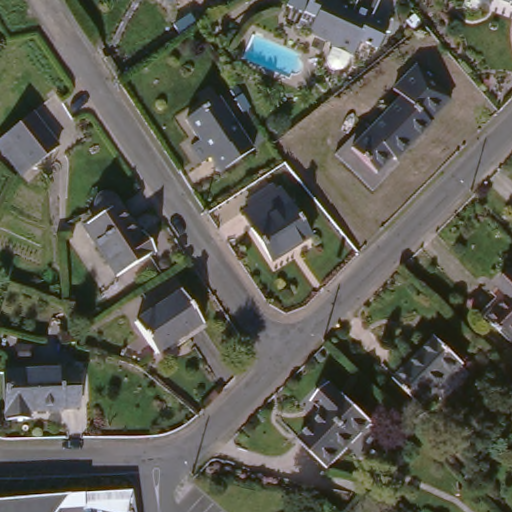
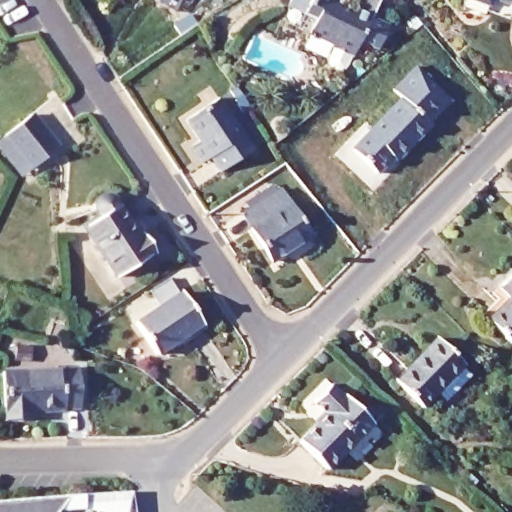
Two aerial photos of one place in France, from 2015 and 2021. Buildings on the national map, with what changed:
unchanged [(348,65),(345,67),(341,69),(337,71),(334,71),(332,67),(330,62),(330,57),(330,54),(334,45),(333,45),(335,40),(311,30),(297,24),(303,10),(287,2),(288,0),(338,0),(355,7),(359,0),(380,0),(374,15),(391,22),(381,46),(362,39),(356,55),(353,54),(350,61),(348,65)]
unchanged [(482,10),(460,2),(461,0),(512,0),(512,10),(485,1),(482,10)]
unchanged [(145,45),(151,55),(133,65),(127,55),(145,45)]
unchanged [(432,120),(435,122),(401,156),(405,160),(378,187),(340,151),(370,119),(376,124),(405,94),(398,86),(421,64),(455,96),(432,120)]
unchanged [(223,175),(213,161),(205,167),(192,150),(201,144),(187,125),(219,101),(255,152),(223,175)]
unchanged [(11,143),(16,146),(7,135),(32,114),(58,146),(62,150),(58,152),(45,164),(37,171),(27,180),(0,149),(0,146),(7,141),(11,143)]
unchanged [(266,262),(245,228),(249,226),(240,211),(277,189),(307,239),(266,262)]
unchanged [(152,256),(112,277),(94,244),(98,241),(89,223),(102,215),(100,205),(101,201),(103,200),(106,198),(110,199),(114,200),(116,202),(137,238),(141,235),(152,256)]
unchanged [(493,292),(508,276),(512,279),(512,348),(510,350),(483,326),(505,303),(493,292)]
unchanged [(154,347),(136,317),(184,290),(203,321),(154,347)]
unchanged [(461,371),(467,378),(442,405),(435,397),(420,412),(392,385),(435,343),(462,370),(461,371)]
unchanged [(82,405),(70,407),(70,410),(37,413),(38,422),(13,425),(9,377),(77,367),(82,405)]
unchanged [(325,475),(294,445),(320,420),(310,407),(327,390),(338,402),(342,399),(372,431),(325,475)]
unchanged [(57,512),(0,512),(0,494),(74,490),(57,512)]

